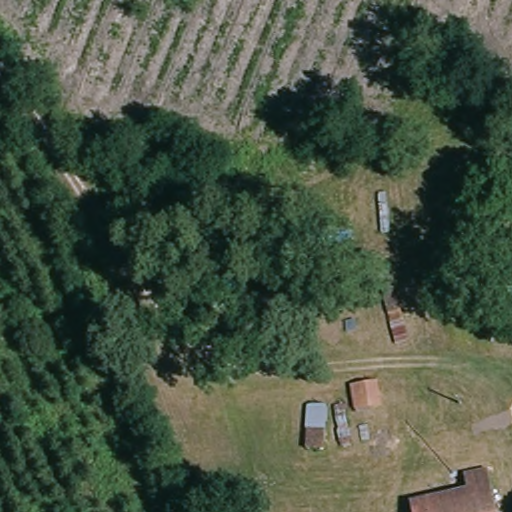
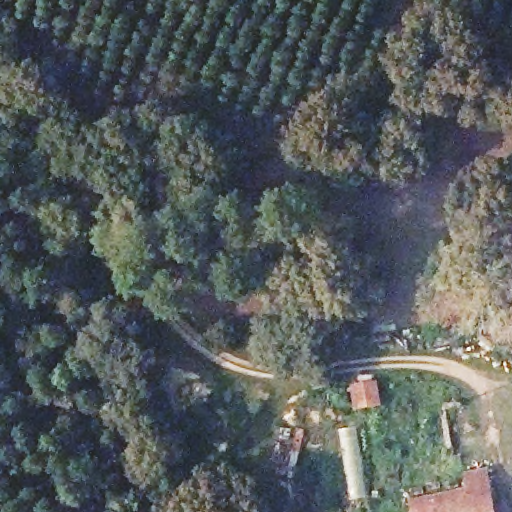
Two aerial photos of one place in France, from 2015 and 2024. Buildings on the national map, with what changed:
unchanged [(465,496),(457,471),(480,465),(488,490),(494,512),(412,512),(411,509),(465,496)]

